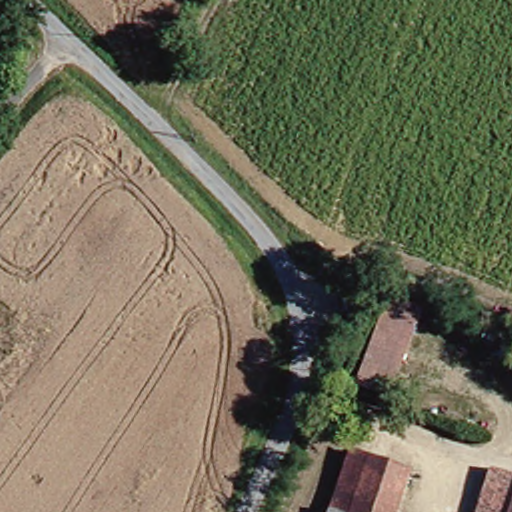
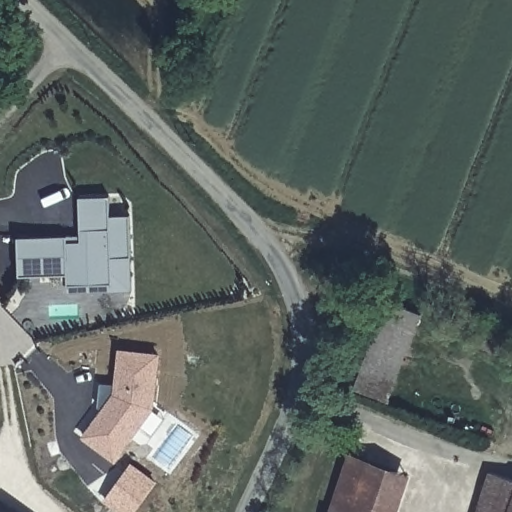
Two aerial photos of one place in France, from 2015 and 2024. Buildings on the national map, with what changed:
new [(67,282),(67,271),(18,272),(18,232),(68,232),(81,232),(77,195),(107,195),(108,215),(128,214),(128,254),(131,288),(67,290),(67,282)]
unchanged [(384,406),(349,392),(383,306),(417,320),(384,406)]
new [(116,392),(121,348),(159,353),(152,407),(115,457),(84,434),(116,392)]
new [(133,512),(119,512),(102,500),(130,461),(156,480),(133,512)]
unchanged [(399,481),(389,512),(326,512),(343,461),(399,481)]
unchanged [(491,475),(512,482),(512,512),(478,512),(490,478),(491,475)]

